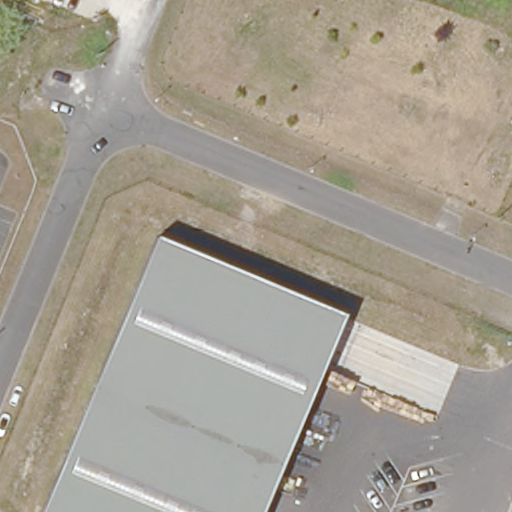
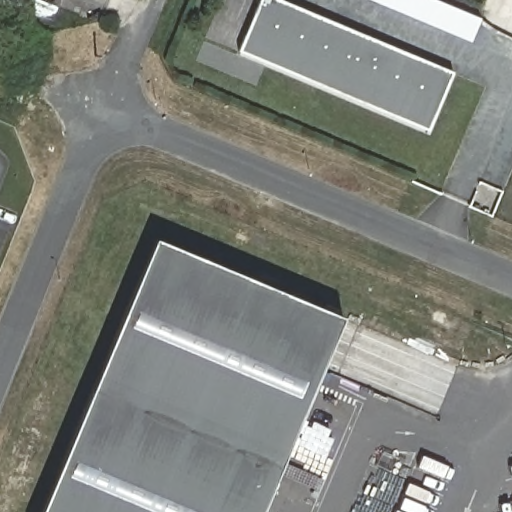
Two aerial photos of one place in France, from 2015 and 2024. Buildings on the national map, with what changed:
new [(430,130),(240,51),(261,0),(282,0),(454,72),(430,130)]
new [(472,42),(370,0),(437,0),(481,18),(472,42)]
unchanged [(42,512),(155,238),(344,316),(263,512),(42,512)]

